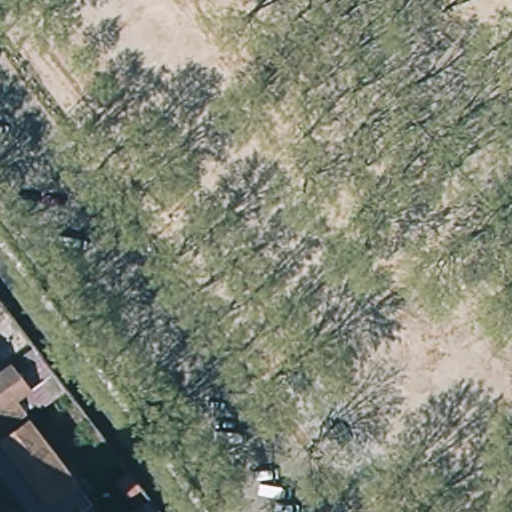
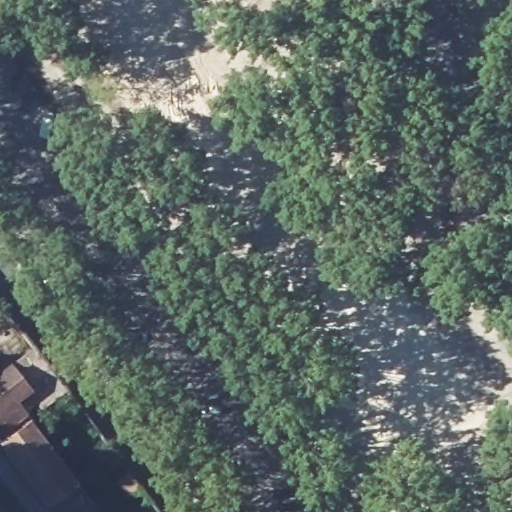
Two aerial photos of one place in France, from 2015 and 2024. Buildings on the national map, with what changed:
unchanged [(71,386),(45,405),(41,400),(0,432),(0,371),(1,373),(39,343),(71,386)]
unchanged [(3,440),(4,440),(34,416),(79,479),(61,493),(41,466),(38,468),(29,456),(21,462),(3,440)]
unchanged [(29,456),(38,468),(41,466),(61,493),(79,479),(96,501),(82,512),(65,512),(49,498),(21,462),(29,456)]

